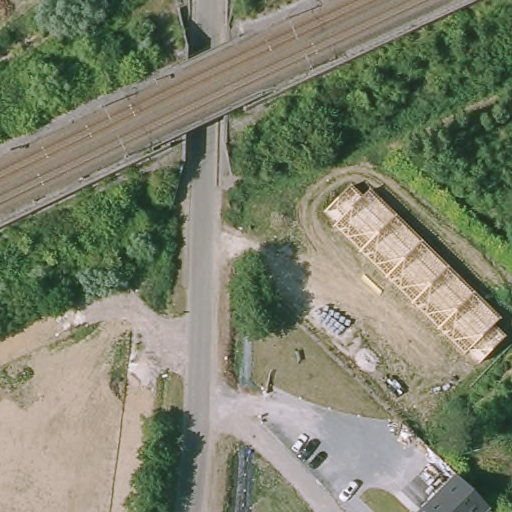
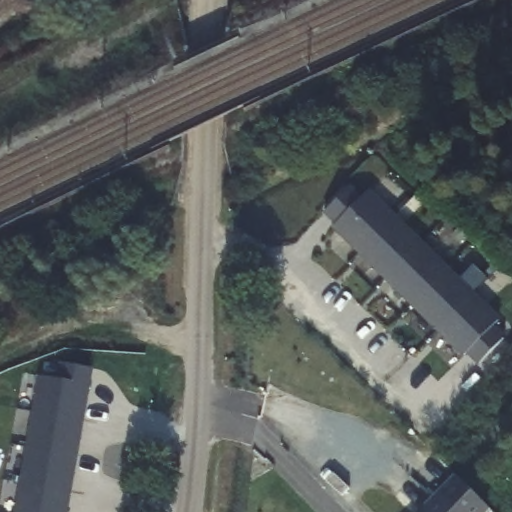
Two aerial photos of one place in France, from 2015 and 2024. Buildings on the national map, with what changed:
unchanged [(500,320),(494,327),(506,337),(480,363),(468,352),(464,356),(333,226),(336,224),(324,212),(350,186),(361,197),(370,189),(500,320)]
new [(61,378),(63,366),(91,368),(65,512),(18,512),(42,376),(61,378)]
unchanged [(487,511),(485,512),(418,512),(457,477),(487,511)]

